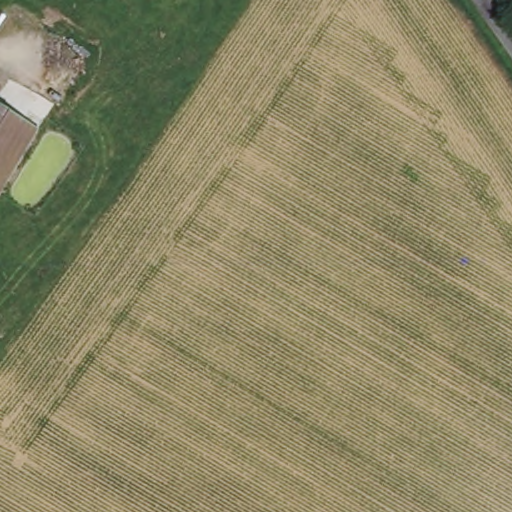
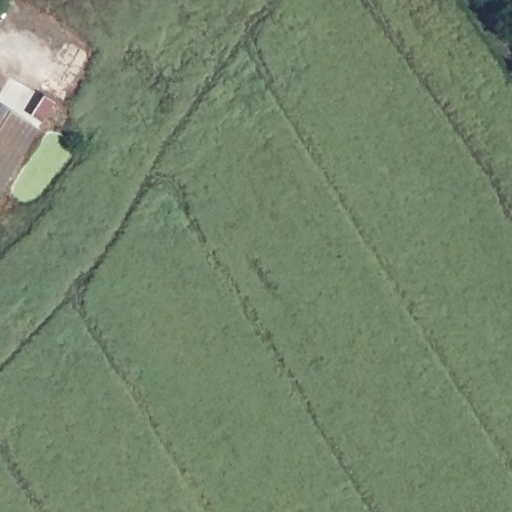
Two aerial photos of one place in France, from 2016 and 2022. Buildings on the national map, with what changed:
unchanged [(0,193),(0,109),(36,131),(0,193)]

